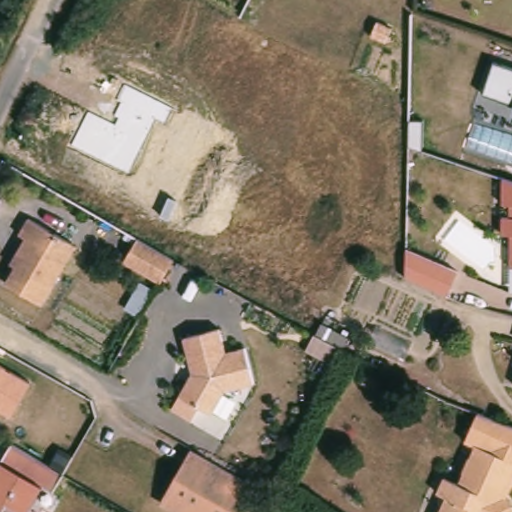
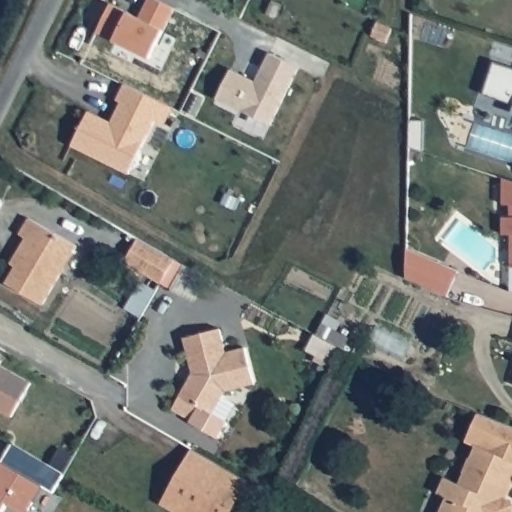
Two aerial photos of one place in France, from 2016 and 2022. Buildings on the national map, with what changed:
new [(111,2),(139,16),(148,0),(160,0),(174,7),(149,57),(97,31),(111,2)]
new [(232,69),(256,81),(270,53),(299,67),(270,124),(217,97),(232,69)]
unchanged [(484,91),(494,62),(512,69),(512,100),(484,91)]
new [(89,110),(111,121),(121,101),(117,99),(125,83),(173,106),(164,123),(156,118),(129,173),(72,144),(89,110)]
unchanged [(511,115),(512,112),(512,115),(511,115)]
unchanged [(508,272),(508,238),(501,238),(501,221),(508,221),(508,207),(500,208),(499,180),(512,185),(512,272),(508,272)]
unchanged [(15,243),(25,225),(73,253),(39,312),(1,289),(13,269),(9,267),(14,259),(21,246),(15,243)]
unchanged [(161,281),(125,260),(139,237),(164,252),(175,258),(161,281)]
unchanged [(405,277),(406,247),(458,269),(447,294),(405,277)]
unchanged [(351,340),(346,349),(319,335),(324,326),(351,340)]
unchanged [(182,339),(219,330),(224,357),(243,352),(252,389),(223,395),(211,418),(200,411),(193,424),(171,411),(186,383),(191,373),(182,339)]
unchanged [(11,417),(0,411),(0,365),(31,383),(11,417)]
unchanged [(499,461),(512,467),(512,480),(502,502),(508,505),(510,512),(438,512),(444,500),(434,496),(441,481),(456,488),(473,450),(461,444),(474,416),(497,426),(484,454),(499,461)]
unchanged [(499,461),(484,454),(497,426),(509,431),(512,432),(512,467),(499,461)]
unchanged [(40,492),(29,512),(13,512),(6,508),(5,512),(0,512),(0,463),(8,448),(59,479),(49,497),(40,492)]
unchanged [(190,451),(248,483),(231,512),(171,512),(160,506),(168,491),(190,451)]

